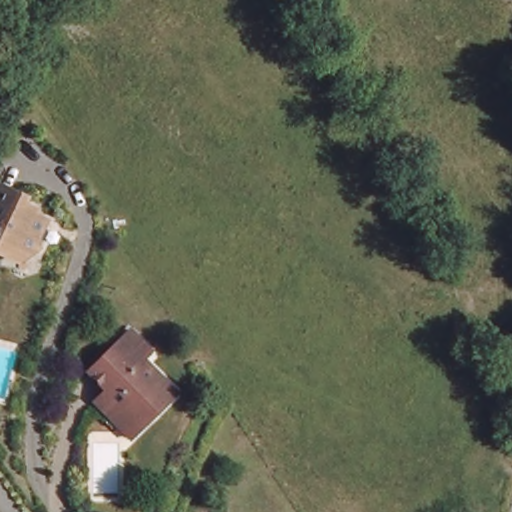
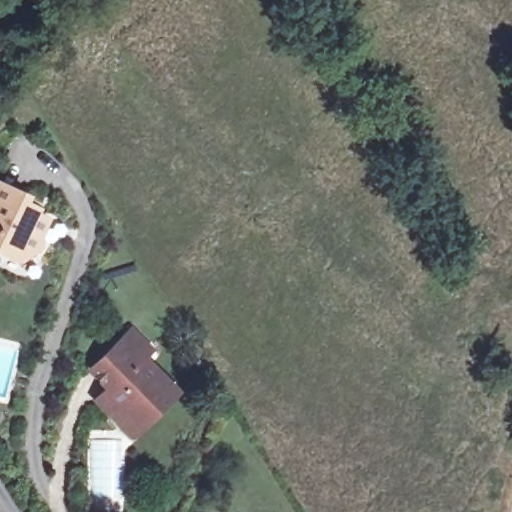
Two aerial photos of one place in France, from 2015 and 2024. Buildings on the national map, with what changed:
unchanged [(25,197),(20,206),(46,220),(36,240),(42,253),(18,264),(0,256),(0,185),(25,197)]
unchanged [(124,327),(138,341),(132,348),(165,383),(139,410),(133,404),(114,422),(90,398),(101,387),(82,368),(124,327)]

